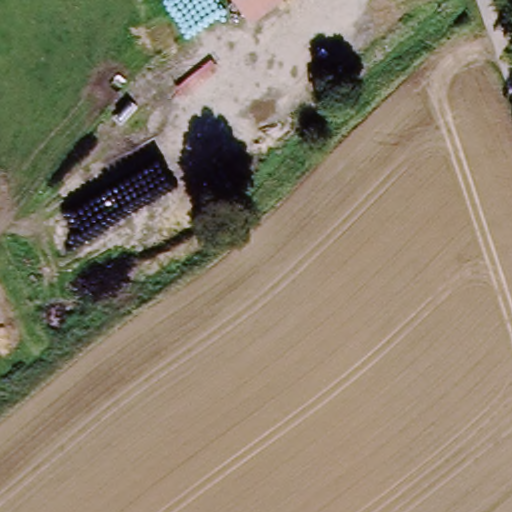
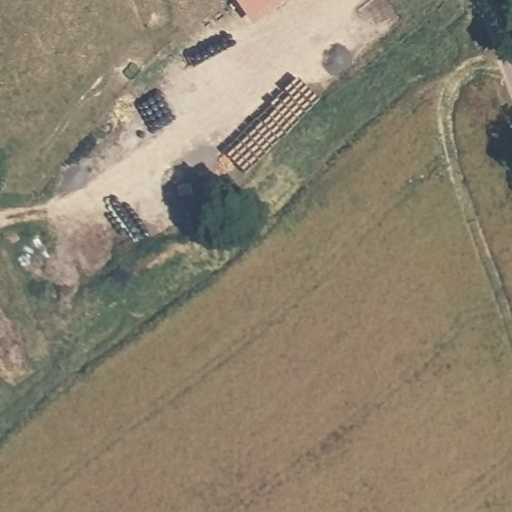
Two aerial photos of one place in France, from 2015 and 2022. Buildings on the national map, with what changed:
unchanged [(288,0),(252,30),(230,0),(288,0)]

